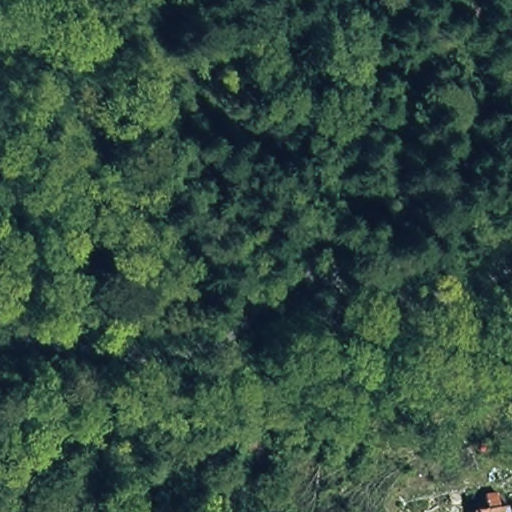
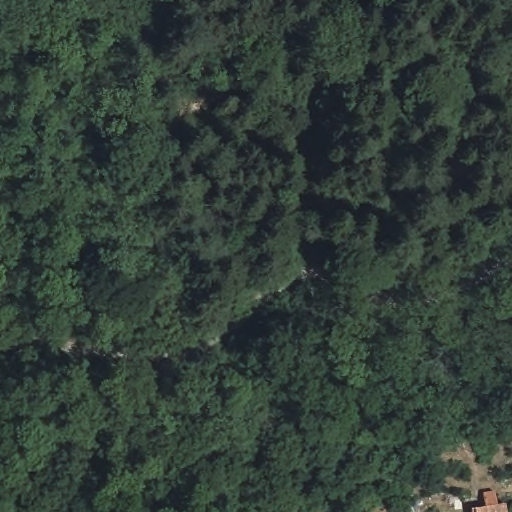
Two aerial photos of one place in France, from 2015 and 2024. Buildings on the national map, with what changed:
unchanged [(483,509),(481,494),(494,492),(496,507),(502,506),(503,512),(469,512),(469,511),(483,509)]

